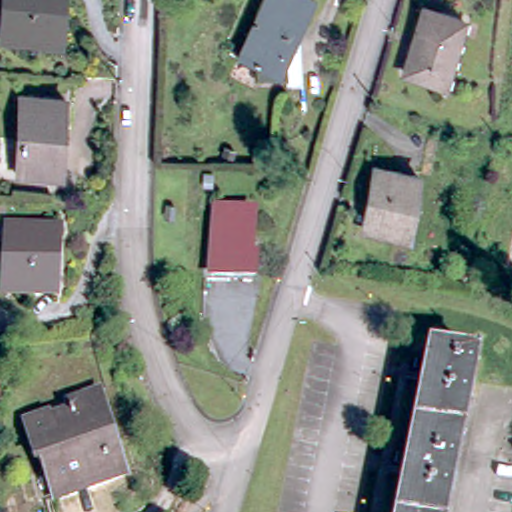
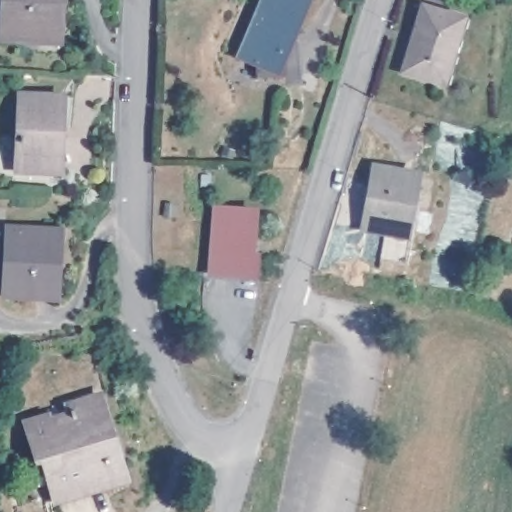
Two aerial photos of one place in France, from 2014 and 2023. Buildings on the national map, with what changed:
unchanged [(10,0),(59,0),(56,39),(8,34),(10,0)]
unchanged [(236,47),(255,0),(300,0),(291,22),(298,35),(299,79),(284,78),(284,68),(254,68),(254,54),(236,47)]
unchanged [(422,3),(461,14),(441,78),(403,65),(422,3)]
unchanged [(20,134),(17,134),(19,91),(65,94),(61,166),(19,163),(20,134)]
unchanged [(372,162),(416,169),(404,230),(363,224),(372,162)]
unchanged [(213,199),(252,200),(250,246),(254,247),(253,268),(209,266),(213,199)]
unchanged [(5,224),(52,224),(51,269),(56,269),(55,293),(3,290),(5,224)]
demolished [(482,352),(474,386),(474,388),(449,512),(401,512),(436,343),(482,352)]
unchanged [(47,454),(40,456),(28,418),(50,412),(51,415),(73,409),(70,401),(103,391),(110,414),(100,417),(113,456),(121,454),(128,476),(60,496),(47,454)]

